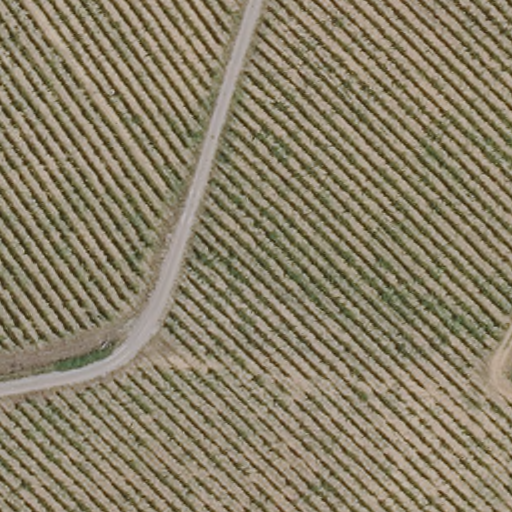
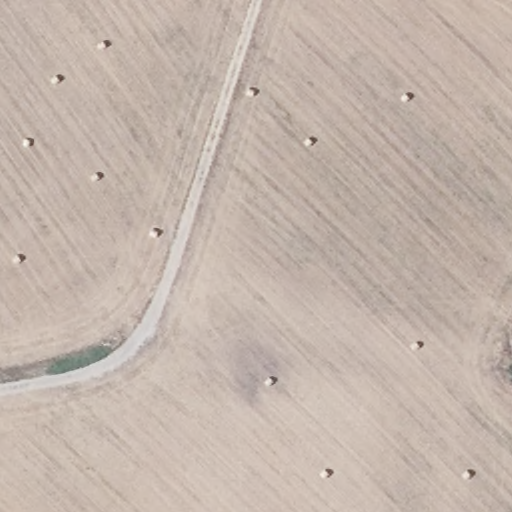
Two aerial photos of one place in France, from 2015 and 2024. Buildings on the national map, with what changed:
[]

